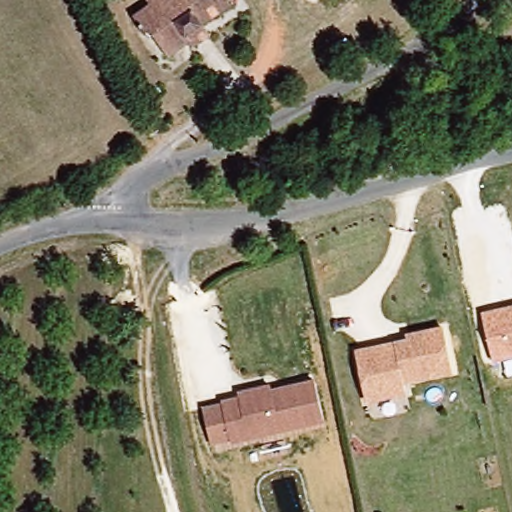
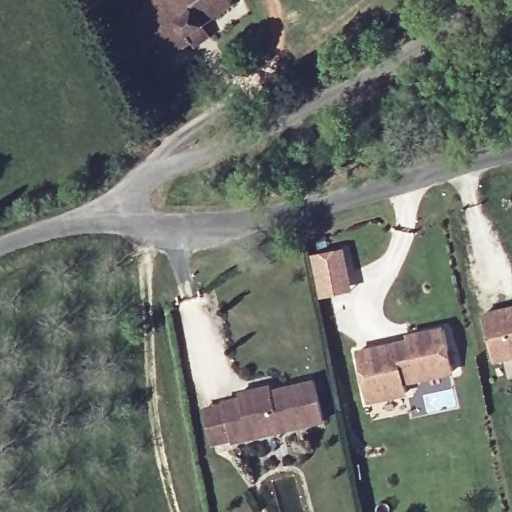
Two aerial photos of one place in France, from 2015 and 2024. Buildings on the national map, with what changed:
unchanged [(202,56),(194,44),(174,58),(156,32),(148,37),(135,19),(147,10),(141,0),(236,0),(242,9),(212,31),(220,45),(202,56)]
new [(322,298),(319,282),(312,255),(339,250),(345,276),(349,292),(322,298)]
unchanged [(512,306),(512,359),(495,362),(482,313),(512,306)]
unchanged [(454,375),(405,384),(406,397),(372,402),(361,350),(401,340),(400,333),(445,325),(454,375)]
unchanged [(327,423),(214,445),(209,408),(224,404),(224,400),(244,396),(244,391),(270,385),(272,391),(316,380),(327,423)]

